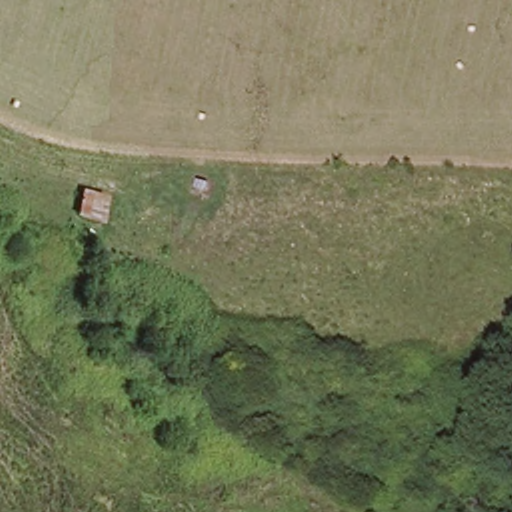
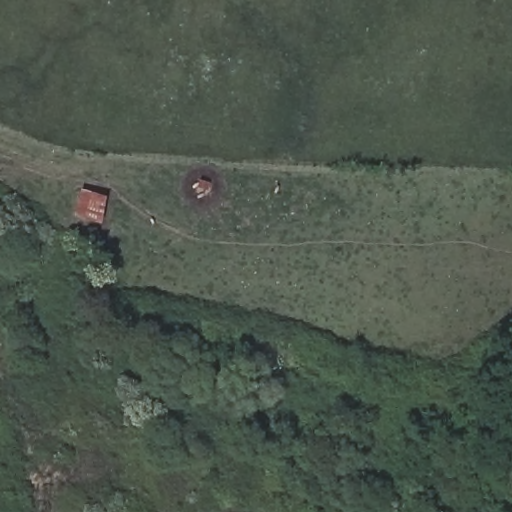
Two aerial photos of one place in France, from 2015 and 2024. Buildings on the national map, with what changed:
unchanged [(76,188),(103,193),(99,221),(73,215),(76,188)]

